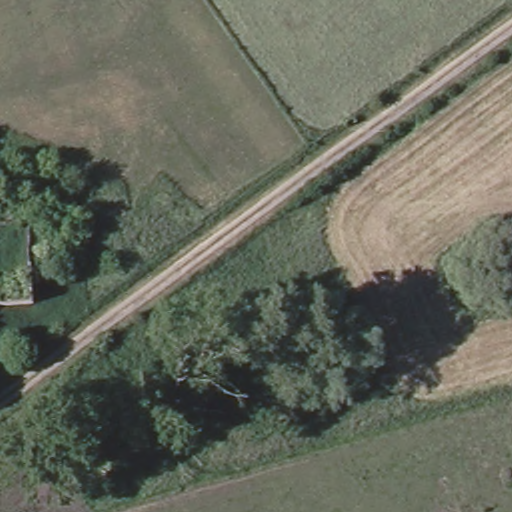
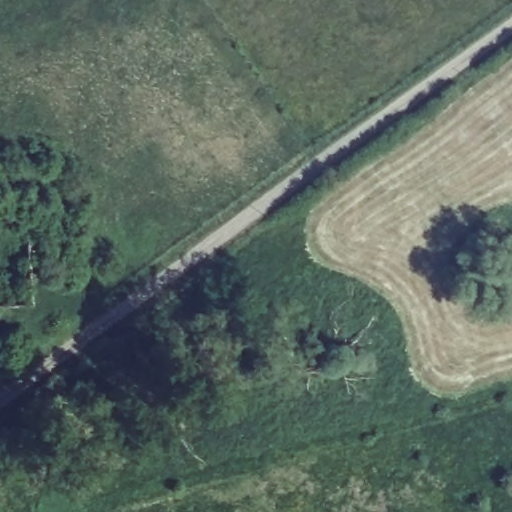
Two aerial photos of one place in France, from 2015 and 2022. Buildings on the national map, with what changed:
[]

